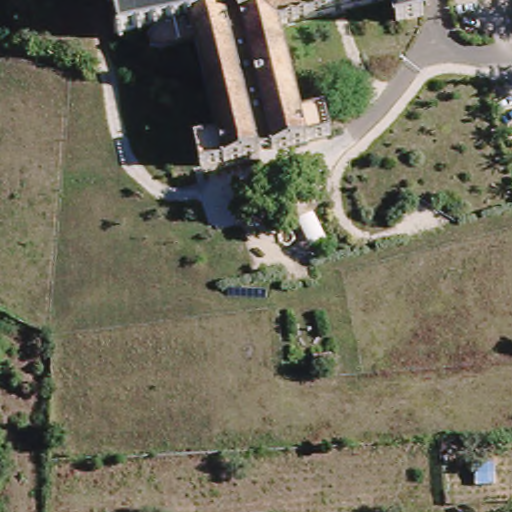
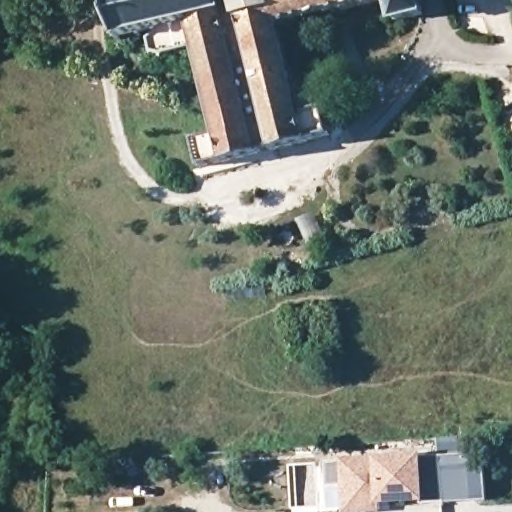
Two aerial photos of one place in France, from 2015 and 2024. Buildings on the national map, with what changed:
unchanged [(225,0),(229,16),(155,32),(119,40),(110,4),(129,0),(225,0)]
unchanged [(394,21),(389,1),(281,26),(304,113),(325,108),(330,136),(231,158),(202,166),(196,137),(218,134),(211,109),(196,49),(162,56),(149,49),(155,32),(229,16),(225,0),(419,0),(423,16),(394,21)]
new [(470,474),(483,475),(485,503),(420,505),(420,503),(379,505),(380,512),(342,512),(340,489),(324,490),(323,462),(372,457),(422,455),(422,458),(470,457),(470,474)]

